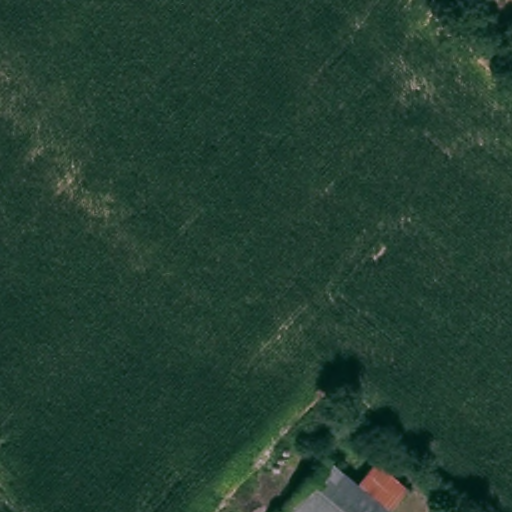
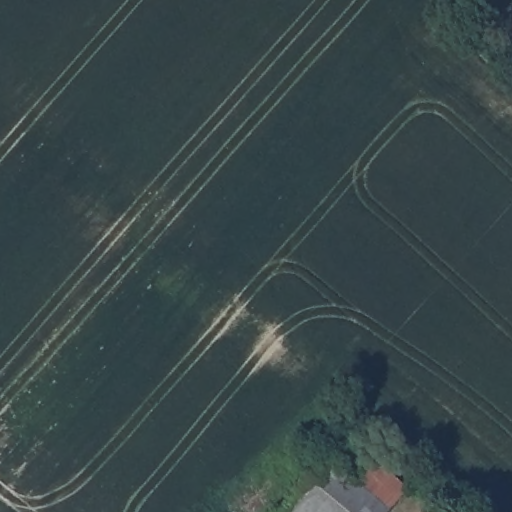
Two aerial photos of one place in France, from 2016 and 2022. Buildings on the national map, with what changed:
unchanged [(411,491),(392,512),(357,512),(314,473),(350,436),(411,491)]
unchanged [(357,512),(285,512),(280,508),(314,473),(357,512)]

